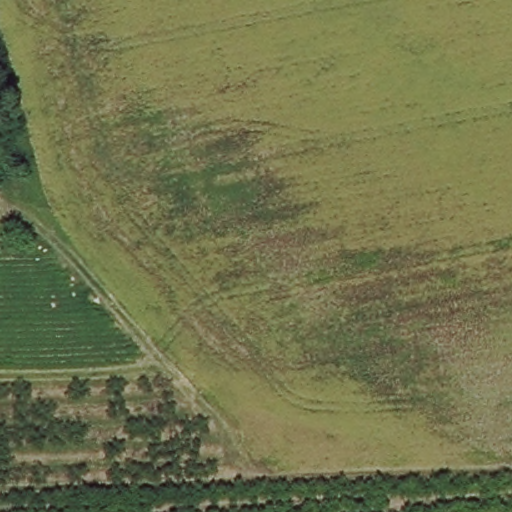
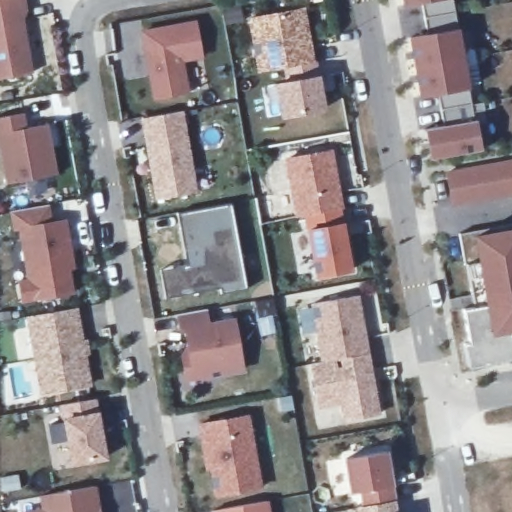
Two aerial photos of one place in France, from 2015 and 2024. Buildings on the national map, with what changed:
new [(30,12),(25,19),(35,73),(0,79),(0,0),(27,0),(30,12)]
new [(430,162),(425,131),(445,127),(440,96),(420,99),(409,37),(429,34),(424,4),(405,6),(404,0),(453,0),(459,31),(470,88),(475,124),(481,152),(430,162)]
new [(304,5),(314,57),(261,67),(251,15),(304,5)]
new [(154,102),(141,32),(195,22),(203,60),(185,64),(191,94),(154,102)]
new [(289,78),(287,63),(316,57),(325,105),(284,112),(278,80),(289,78)]
new [(27,123),(48,120),(58,170),(8,179),(0,135),(0,113),(24,109),(27,123)]
new [(156,201),(141,118),(184,111),(198,192),(156,201)]
new [(307,211),(308,216),(296,219),(285,158),(331,151),(340,205),(307,211)]
new [(453,207),(447,173),(512,162),(512,197),(453,207)]
new [(51,218),(66,215),(73,254),(67,255),(73,288),(33,295),(30,275),(21,224),(17,225),(13,207),(48,201),(51,218)]
new [(223,293),(221,287),(182,293),(177,267),(195,262),(187,227),(182,227),(179,213),(232,202),(248,288),(223,293)]
new [(340,205),(352,266),(318,272),(307,211),(340,205)]
new [(510,334),(512,343),(512,361),(467,370),(455,307),(475,304),(467,267),(462,239),(475,237),(512,229),(512,334),(510,334)]
new [(33,295),(23,297),(20,277),(30,276),(33,295)]
new [(358,292),(368,349),(324,357),(314,299),(358,292)]
new [(76,303),(90,381),(43,388),(30,312),(76,303)]
new [(206,305),(209,321),(235,316),(243,365),(188,375),(183,351),(191,350),(186,326),(182,327),(179,310),(206,305)]
new [(368,350),(379,410),(345,416),(343,397),(319,402),(312,360),(368,350)]
new [(95,395),(105,453),(73,459),(62,401),(95,395)]
new [(248,412),(261,483),(217,491),(206,436),(203,437),(200,420),(248,412)]
new [(385,447),(394,497),(365,502),(362,487),(352,488),(346,455),(385,447)]
new [(95,482),(100,512),(23,512),(23,509),(45,505),(42,491),(95,482)]
new [(267,497),(269,512),(214,512),(214,507),(267,497)]
new [(394,497),(397,512),(359,512),(358,503),(365,502),(394,497)]

